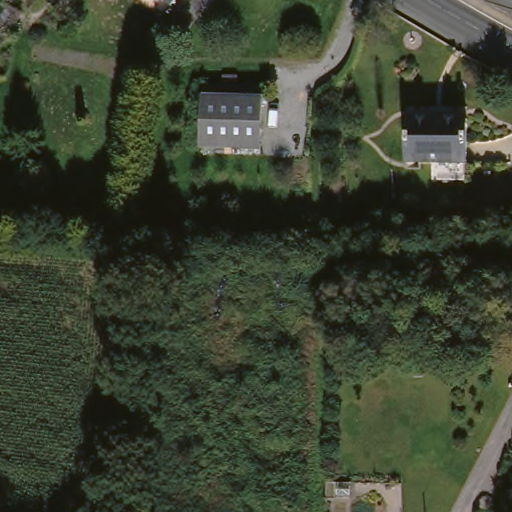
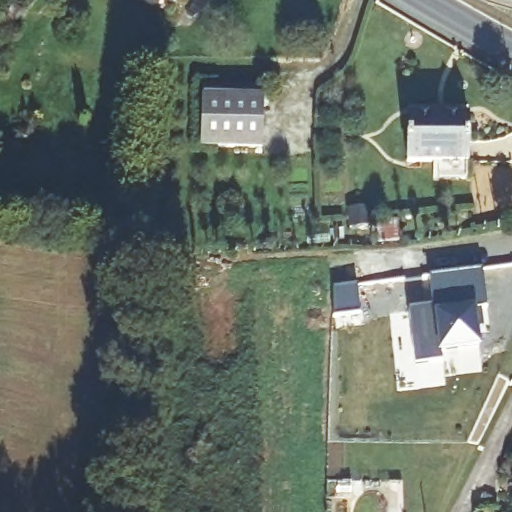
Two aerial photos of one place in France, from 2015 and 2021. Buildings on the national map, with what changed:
unchanged [(171,0),(183,0),(178,6),(171,0)]
unchanged [(22,13),(12,29),(12,30),(8,29),(0,27),(0,22),(10,6),(22,13)]
unchanged [(264,99),(262,149),(201,147),(203,97),(264,99)]
unchanged [(408,162),(407,118),(468,118),(468,162),(408,162)]
new [(434,304),(431,274),(484,268),(488,307),(476,309),(479,346),(442,350),(443,360),(416,363),(410,306),(434,304)]
new [(333,289),(358,289),(360,317),(333,316),(333,289)]

